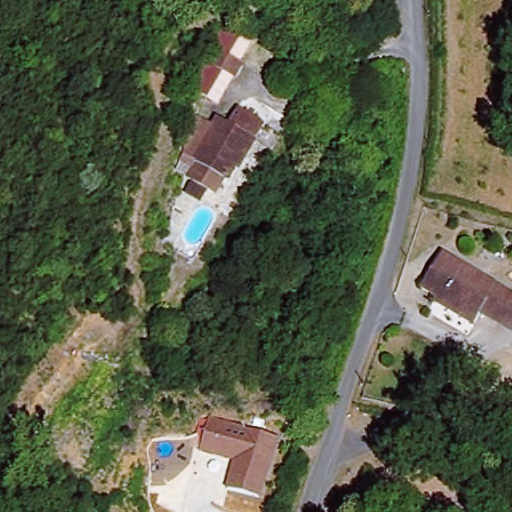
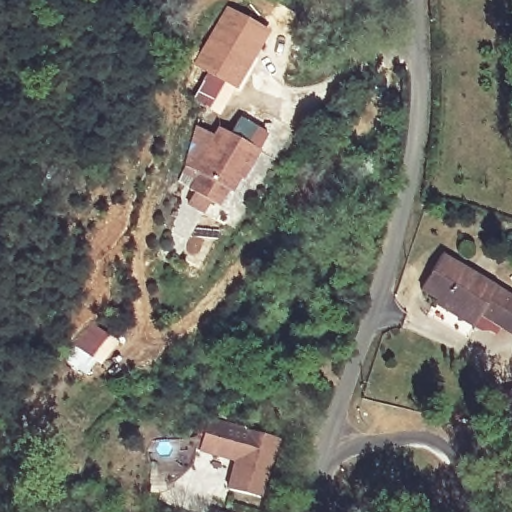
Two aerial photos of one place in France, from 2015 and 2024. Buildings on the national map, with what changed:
new [(226,4),(269,30),(236,89),(206,72),(191,63),(226,4)]
demolished [(260,67),(253,83),(226,72),(233,56),(260,67)]
new [(206,72),(236,89),(218,115),(191,99),(206,72)]
unchanged [(194,200),(201,189),(196,186),(204,170),(199,167),(223,123),(234,129),(243,113),(268,126),(259,142),(263,144),(251,165),(246,174),(243,172),(235,187),(231,185),(223,201),(215,197),(209,209),(194,200)]
unchanged [(441,255),(512,298),(512,334),(481,315),(478,319),(474,327),(434,302),(436,298),(420,288),(441,255)]
new [(119,342),(101,365),(97,361),(85,375),(66,359),(95,323),(119,342)]
unchanged [(236,464),(198,452),(208,423),(219,425),(279,441),(259,501),(228,492),(236,464)]

